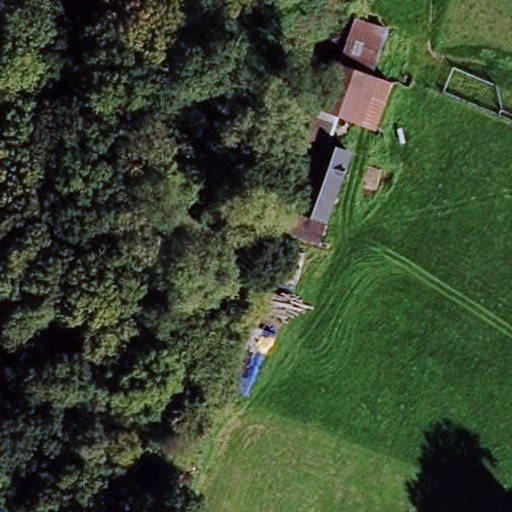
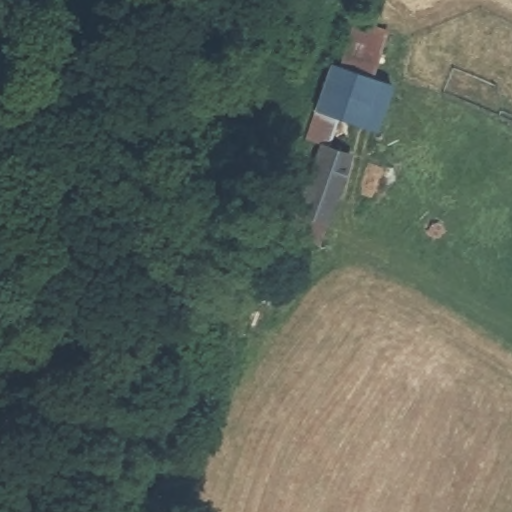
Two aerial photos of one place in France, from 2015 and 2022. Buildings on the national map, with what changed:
unchanged [(385,35),(370,82),(337,71),(352,25),(385,35)]
unchanged [(370,82),(390,89),(375,132),(340,120),(330,152),(309,146),(305,145),(332,70),(337,71),(370,82)]
unchanged [(350,160),(322,245),(289,235),(295,216),(282,213),(305,145),(309,146),(330,152),(350,160)]

